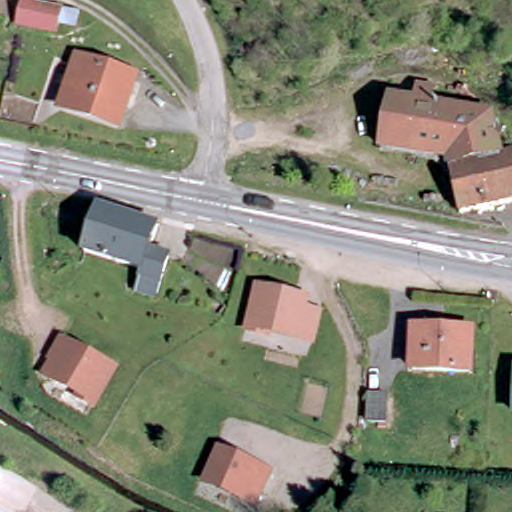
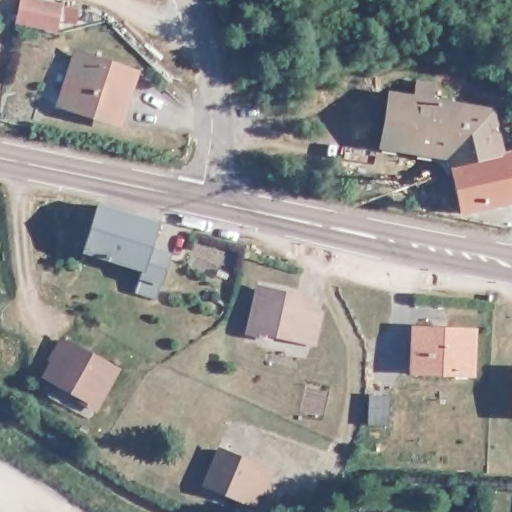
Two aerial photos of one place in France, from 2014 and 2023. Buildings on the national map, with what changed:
unchanged [(23,27),(24,21),(28,0),(67,0),(71,1),(69,9),(86,12),(82,29),(65,25),(63,35),(23,27)]
unchanged [(74,92),(83,63),(141,80),(126,128),(69,111),(74,92)]
unchanged [(512,163),(512,213),(472,222),(462,177),(448,161),(389,150),(396,99),(421,102),(422,89),(439,92),(437,104),(499,115),(509,164),(512,163)]
unchanged [(159,225),(151,252),(169,257),(157,299),(136,293),(143,272),(85,254),(96,217),(98,212),(159,225)]
unchanged [(304,303),(322,307),(316,337),(270,328),(269,331),(253,328),(261,287),(306,296),(304,303)]
unchanged [(477,337),(474,377),(417,373),(420,332),(477,337)]
unchanged [(98,402),(95,406),(81,397),(83,393),(58,380),(45,372),(56,352),(63,340),(116,368),(98,402)]
unchanged [(371,387),(389,389),(386,422),(371,421),(371,387)]
unchanged [(261,501),(246,495),(209,480),(223,447),(259,462),(274,469),(261,501)]

